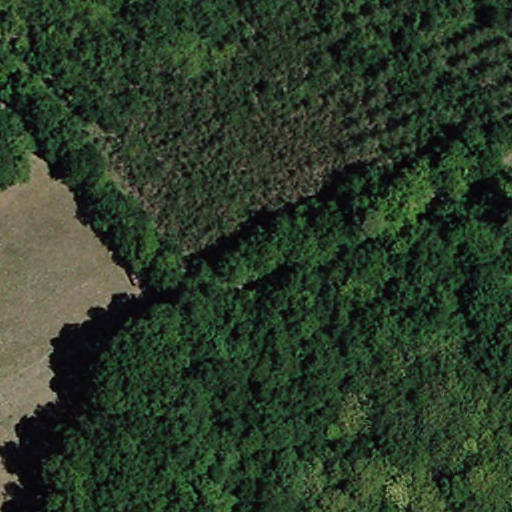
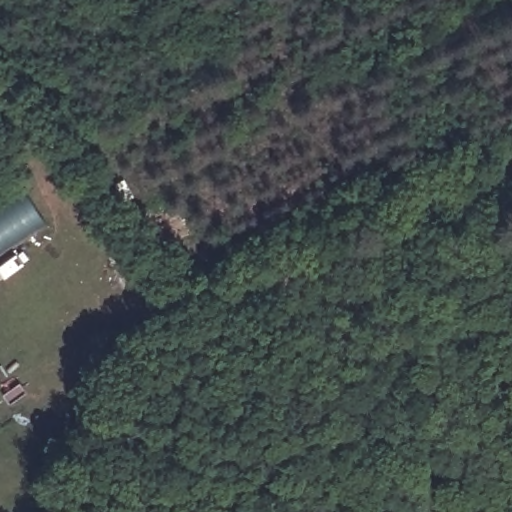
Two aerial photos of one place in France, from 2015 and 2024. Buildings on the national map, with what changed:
new [(0,255),(0,211),(23,196),(43,229),(0,255)]

